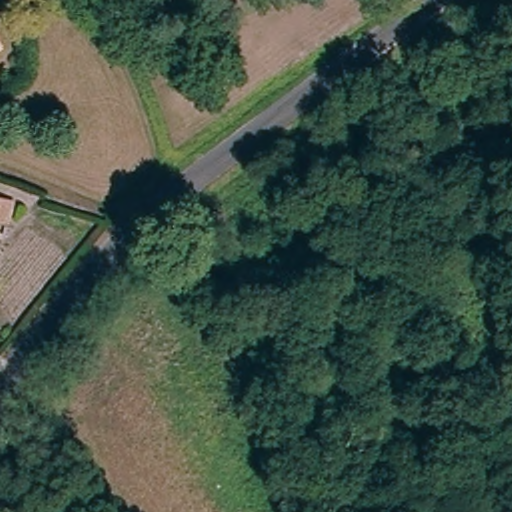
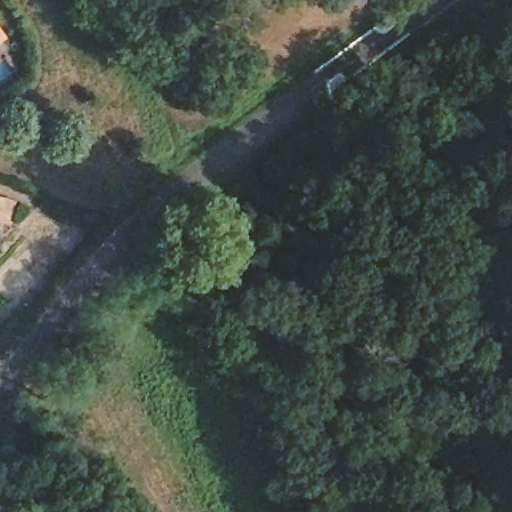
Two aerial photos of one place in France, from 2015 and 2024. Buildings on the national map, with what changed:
unchanged [(10,226),(0,224),(0,198),(15,201),(10,226)]

